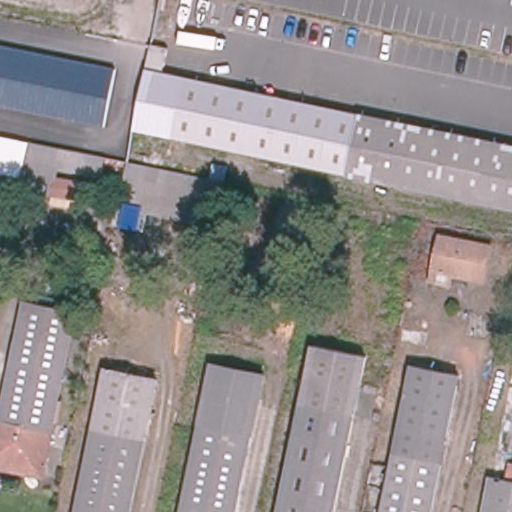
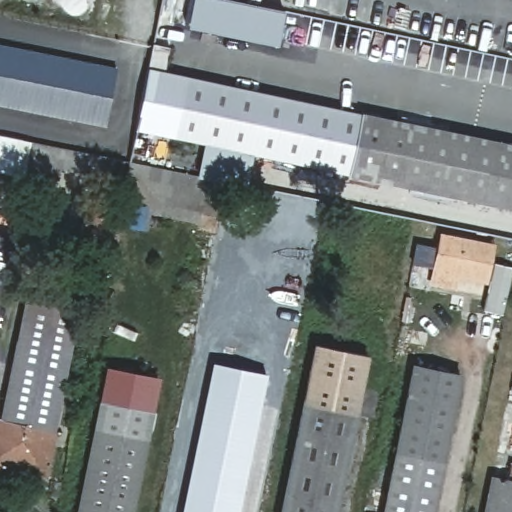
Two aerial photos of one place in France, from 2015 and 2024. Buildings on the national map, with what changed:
new [(192,0),(236,0),(283,10),(276,45),(186,27),(192,0)]
unchanged [(134,130),(146,67),(150,42),(169,47),(164,72),(184,78),(172,137),(134,130)]
unchanged [(0,45),(116,68),(104,127),(0,105),(0,45)]
unchanged [(184,78),(512,146),(512,208),(172,137),(184,78)]
unchanged [(20,162),(58,170),(57,177),(79,182),(74,209),(49,204),(53,185),(21,178),(0,174),(0,136),(24,141),(20,162)]
unchanged [(81,174),(20,162),(24,141),(85,153),(81,174)]
unchanged [(142,187),(175,194),(171,210),(217,219),(215,232),(114,212),(124,160),(143,165),(142,187)]
unchanged [(217,219),(171,210),(175,194),(142,187),(143,165),(226,179),(217,219)]
unchanged [(485,281),(452,275),(450,285),(431,281),(440,235),(493,245),(485,281)]
unchanged [(0,276),(0,265),(2,266),(0,276)]
unchanged [(44,475),(0,466),(0,420),(24,301),(77,311),(53,432),(44,475)]
unchanged [(335,512),(280,512),(315,344),(367,355),(335,512)]
unchanged [(237,512),(182,512),(212,362),(239,368),(265,373),(237,512)]
unchanged [(432,512),(383,512),(412,366),(460,375),(432,512)]
unchanged [(132,512),(76,512),(106,367),(159,378),(132,512)]
unchanged [(491,477),(512,482),(512,512),(485,512),(491,477)]

